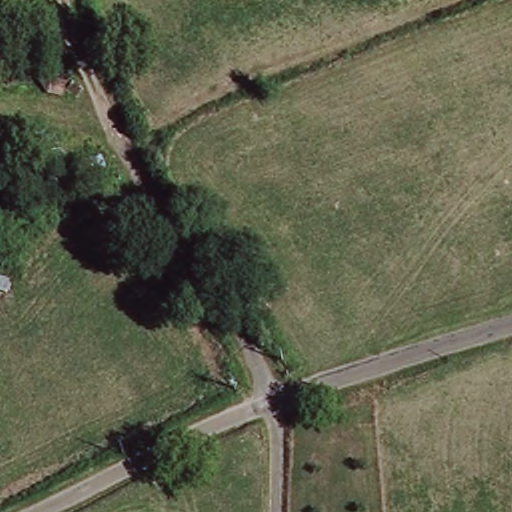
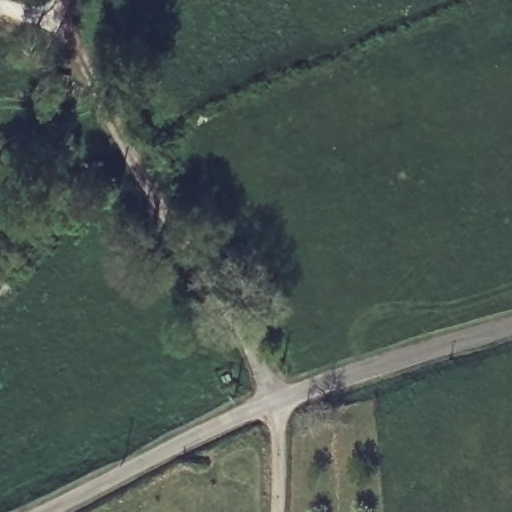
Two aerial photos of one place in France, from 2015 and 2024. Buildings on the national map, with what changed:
unchanged [(30,80),(28,68),(40,62),(67,76),(55,98),(30,80)]
unchanged [(117,180),(95,187),(87,163),(105,155),(117,180)]

